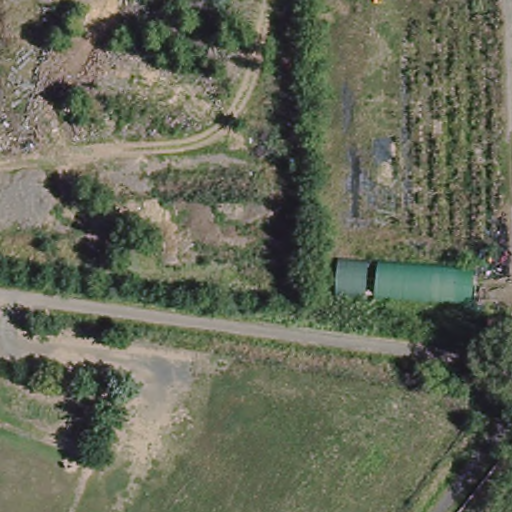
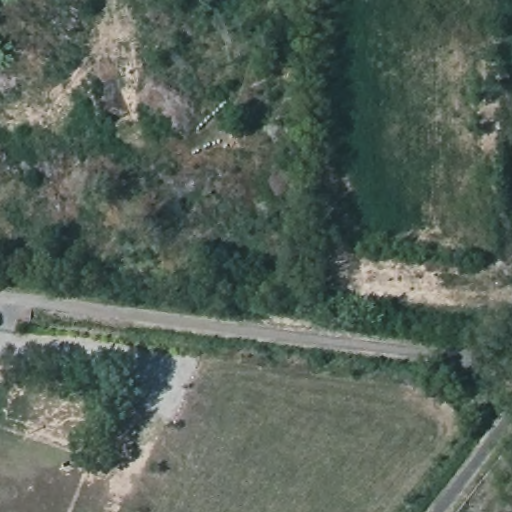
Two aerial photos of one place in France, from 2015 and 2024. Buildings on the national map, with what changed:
demolished [(338,264),(485,271),(484,307),(334,297),(338,264)]
demolished [(507,335),(488,334),(490,317),(508,318),(507,335)]

